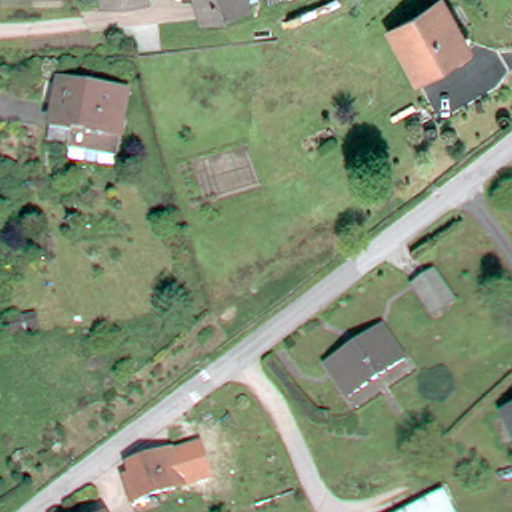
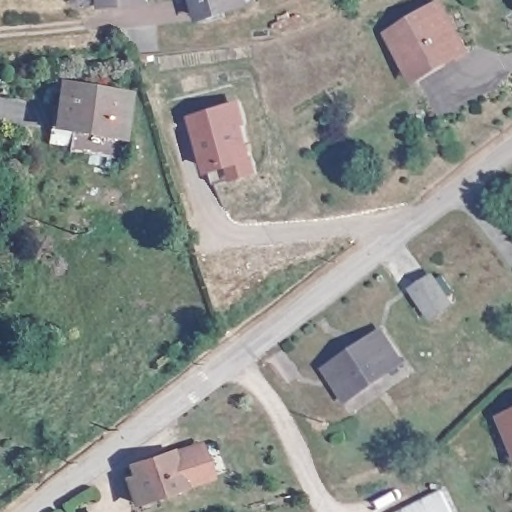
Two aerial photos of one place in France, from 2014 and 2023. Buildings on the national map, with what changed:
unchanged [(140,1),(96,5),(95,0),(139,0),(140,1)]
unchanged [(197,0),(243,0),(244,2),(203,16),(197,0)]
unchanged [(436,2),(463,45),(413,75),(386,33),(436,2)]
unchanged [(59,81),(124,90),(115,159),(62,152),(66,122),(52,120),(59,81)]
new [(244,102),(253,126),(249,128),(263,170),(236,180),(233,167),(211,174),(194,117),(244,102)]
unchanged [(411,289),(429,276),(448,303),(430,316),(411,289)]
unchanged [(378,330),(401,362),(346,401),(323,369),(378,330)]
unchanged [(507,416),(512,413),(512,427),(507,416)]
unchanged [(201,441),(211,479),(180,488),(169,453),(201,441)]
unchanged [(180,488),(133,503),(126,480),(134,478),(130,467),(169,453),(180,488)]
unchanged [(448,512),(391,512),(429,486),(448,512)]
unchanged [(106,512),(103,512),(105,511),(106,512)]

